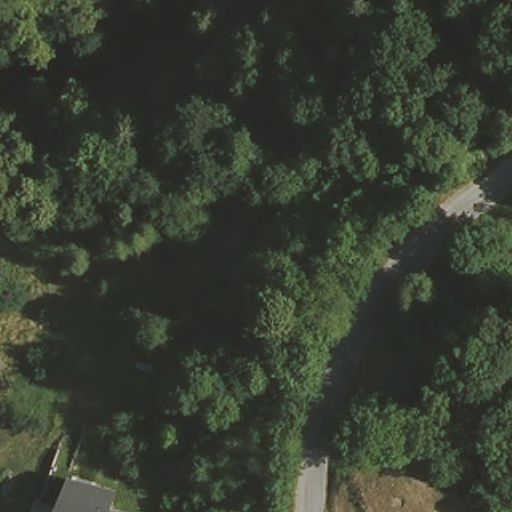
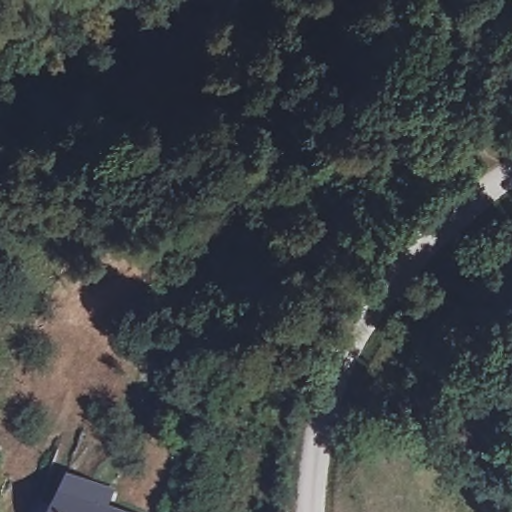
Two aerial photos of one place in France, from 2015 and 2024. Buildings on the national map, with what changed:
unchanged [(106,496),(102,512),(59,512),(67,487),(106,496)]

